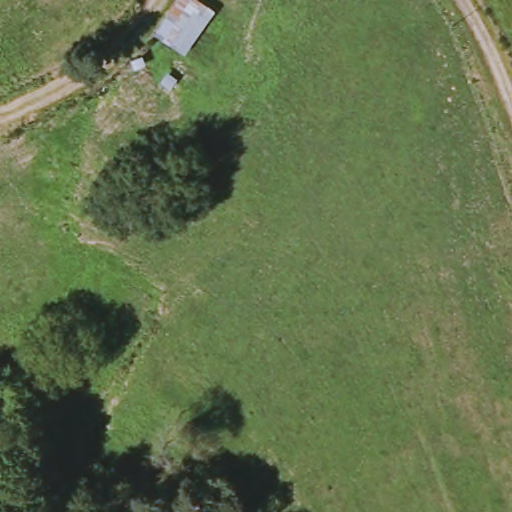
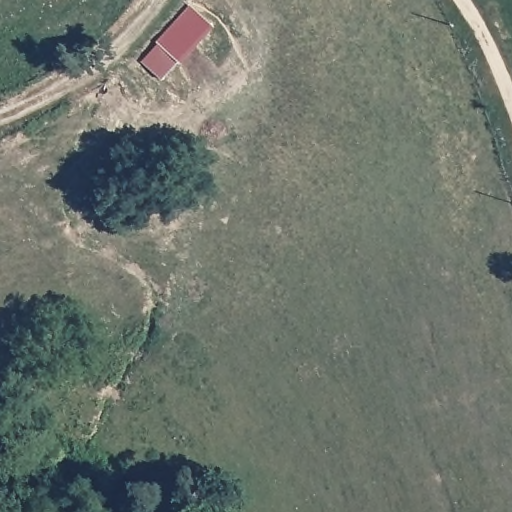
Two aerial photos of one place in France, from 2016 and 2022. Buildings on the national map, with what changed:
unchanged [(151,35),(175,0),(194,0),(210,11),(180,55),(151,35)]

